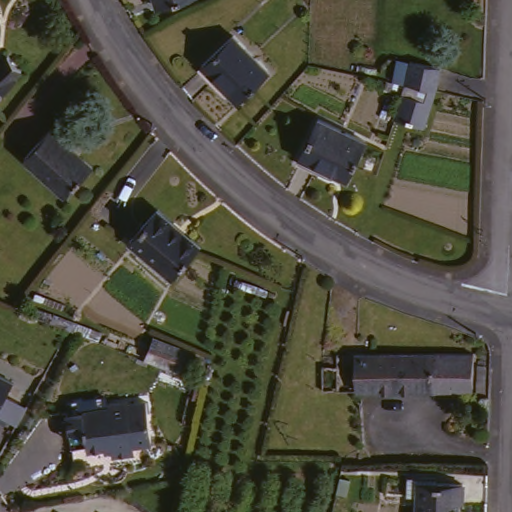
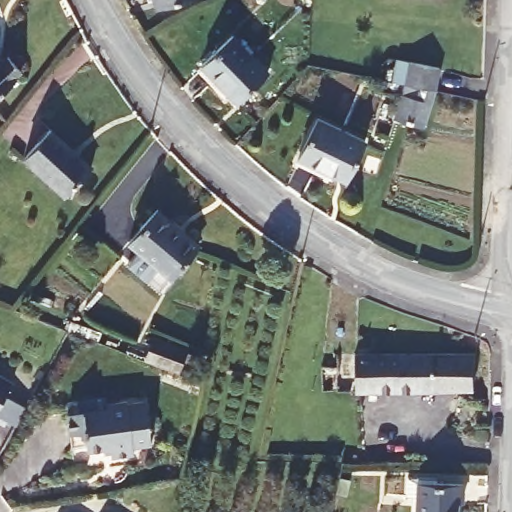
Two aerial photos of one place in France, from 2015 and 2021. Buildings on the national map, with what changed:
unchanged [(149,0),(176,0),(151,7),(149,0)]
unchanged [(267,75),(237,104),(201,68),(232,39),(267,75)]
unchanged [(4,56),(18,73),(10,80),(14,84),(0,96),(0,60),(4,56)]
unchanged [(405,106),(386,101),(388,90),(391,91),(394,71),(410,74),(438,79),(434,99),(436,99),(423,133),(397,125),(405,106)]
unchanged [(340,182),(296,159),(315,121),(360,145),(340,182)]
unchanged [(21,161),(49,133),(88,173),(61,200),(21,161)]
unchanged [(167,281),(126,245),(156,212),(167,224),(164,227),(194,252),(167,281)]
unchanged [(179,363),(148,349),(156,330),(187,344),(179,363)]
unchanged [(467,357),(468,403),(353,399),(353,356),(467,357)]
unchanged [(21,380),(0,417),(0,370),(21,380)]
unchanged [(113,448),(97,449),(94,438),(73,439),(69,409),(149,399),(153,445),(142,447),(143,456),(114,459),(113,448)]
unchanged [(463,507),(458,507),(458,512),(418,512),(418,504),(408,504),(409,483),(437,484),(436,488),(463,488),(463,507)]

